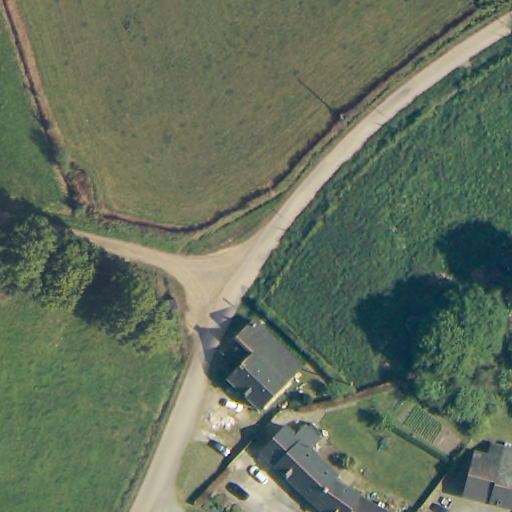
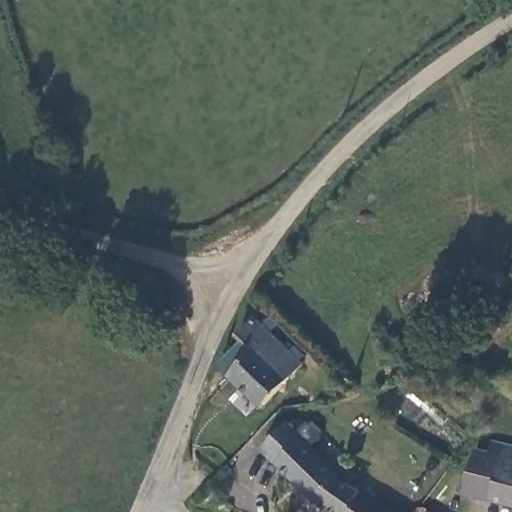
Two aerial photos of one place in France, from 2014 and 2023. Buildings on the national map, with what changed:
unchanged [(302,366),(262,408),(230,378),(232,375),(227,369),(222,364),(244,341),(238,336),(251,314),(302,366)]
unchanged [(310,452),(343,487),(342,492),(381,512),(321,512),(257,450),(282,424),(292,433),(306,422),(323,440),(310,452)]
unchanged [(465,494),(474,452),(487,453),(488,442),(512,448),(512,505),(465,494)]
unchanged [(422,512),(411,512),(413,507),(422,512)]

